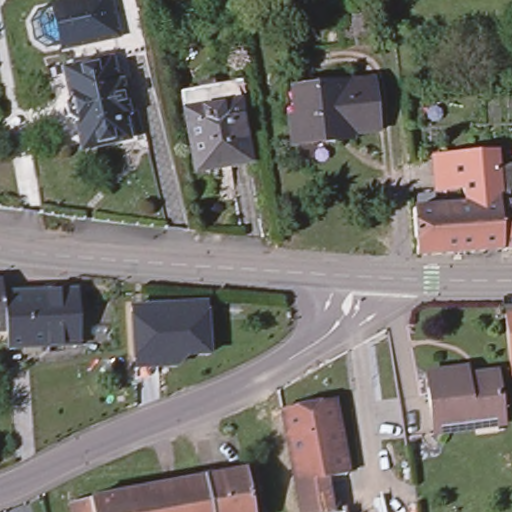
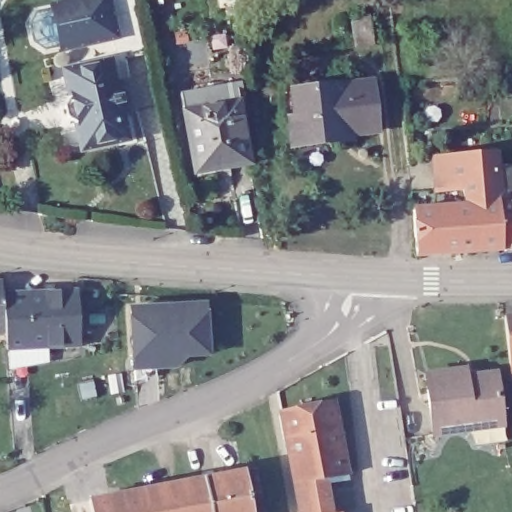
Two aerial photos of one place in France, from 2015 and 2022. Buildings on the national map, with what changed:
unchanged [(62,47),(52,1),(57,0),(110,0),(119,37),(62,47)]
unchanged [(351,15),(370,12),(374,42),(354,45),(351,15)]
unchanged [(90,64),(111,59),(127,137),(106,141),(90,64)]
unchanged [(63,94),(58,72),(71,69),(90,64),(106,141),(74,148),(74,145),(69,124),(58,117),(56,105),(63,94)]
unchanged [(347,82),(372,79),(377,127),(354,130),(347,82)]
unchanged [(309,86),(347,82),(354,130),(337,132),(337,138),(317,141),(313,115),(309,86)]
unchanged [(295,143),(292,116),(297,116),(294,87),(309,86),(313,115),(317,141),(295,143)]
unchanged [(252,160),(196,170),(184,106),(182,95),(206,91),(208,102),(241,96),(252,160)]
unchanged [(417,262),(416,256),(414,217),(457,214),(465,214),(463,197),(437,197),(434,166),(496,160),(497,174),(495,174),(497,211),(512,210),(512,256),(502,257),(485,258),(461,260),(417,262)]
unchanged [(0,293),(75,291),(77,346),(4,348),(2,330),(0,304),(0,293)]
unchanged [(134,317),(133,310),(148,308),(205,303),(205,306),(205,307),(210,354),(187,356),(187,357),(177,367),(136,371),(135,358),(134,317)]
unchanged [(0,330),(0,304),(2,330),(0,330)]
unchanged [(512,313),(512,366),(511,357),(505,314),(512,313)]
unchanged [(476,427),(436,432),(427,373),(467,367),(468,375),(497,371),(504,416),(505,422),(476,427)]
unchanged [(277,405),(330,395),(343,468),(314,474),(291,478),(277,405)]
unchanged [(241,468),(249,512),(208,512),(202,476),(241,468)]
unchanged [(314,474),(318,491),(323,490),(327,510),(317,512),(297,512),(291,478),(314,474)]
unchanged [(202,476),(208,512),(136,512),(132,488),(202,476)]
unchanged [(86,497),(132,488),(136,512),(69,512),(66,501),(86,497)]
unchanged [(389,498),(392,512),(317,512),(327,510),(389,498)]

